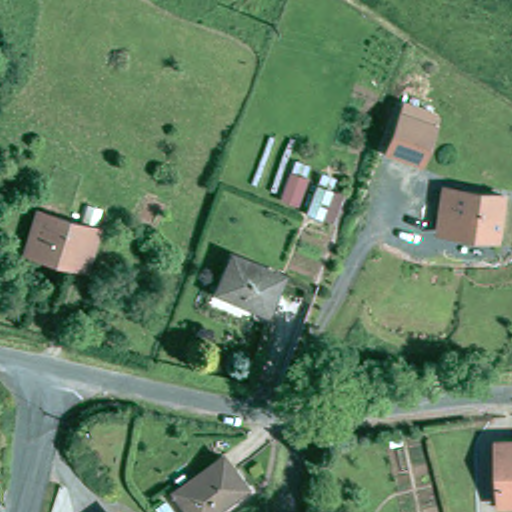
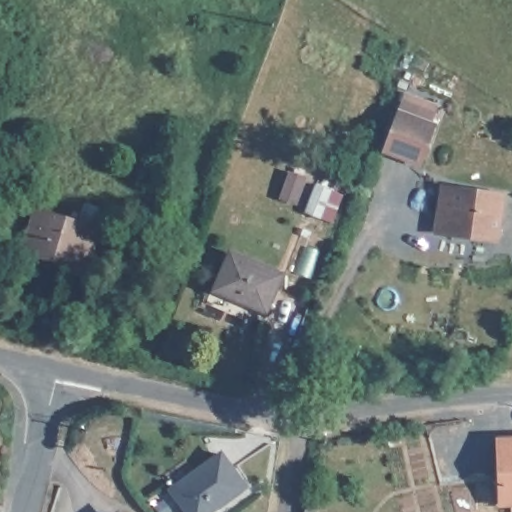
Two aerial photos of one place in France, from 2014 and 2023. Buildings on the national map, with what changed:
unchanged [(436,114),(424,150),(389,139),(404,102),(436,114)]
unchanged [(326,208),(312,202),(324,174),(337,180),(326,208)]
unchanged [(478,236),(439,231),(445,191),(491,196),(504,197),(498,238),(478,236)]
unchanged [(30,244),(41,206),(102,224),(90,262),(76,258),(75,262),(58,256),(29,249),(30,244)]
unchanged [(281,270),(265,307),(248,300),(249,296),(218,283),(233,250),(281,270)]
unchanged [(512,502),(509,502),(500,441),(512,440),(512,502)]
unchanged [(173,493),(223,456),(246,487),(212,512),(188,512),(173,493)]

